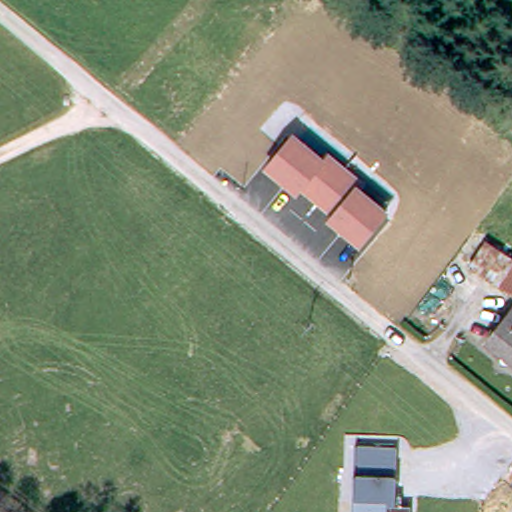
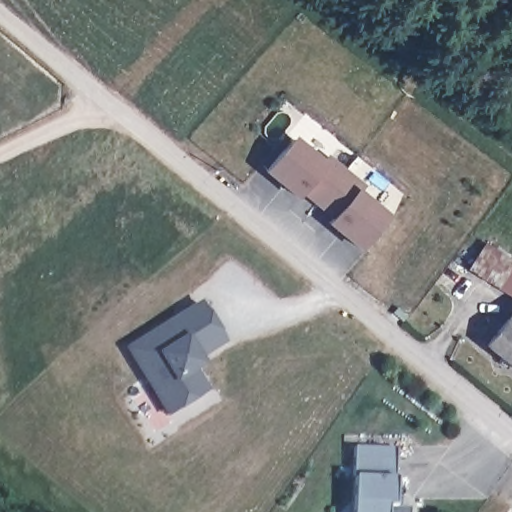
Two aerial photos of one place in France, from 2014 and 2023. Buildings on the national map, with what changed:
unchanged [(323,159),(330,150),(363,180),(357,188),(390,212),(361,250),(327,223),(331,215),(302,194),(297,202),(262,172),(292,133),(323,159)]
unchanged [(512,296),(470,264),(487,239),(512,258),(512,296)]
new [(199,360),(202,366),(195,370),(207,391),(167,416),(124,348),(200,301),(225,344),(199,360)]
unchanged [(512,310),(512,366),(485,344),(512,310)]
unchanged [(354,503),(355,476),(355,449),(394,449),(393,479),(393,507),(410,508),(410,512),(353,512),(354,503)]

